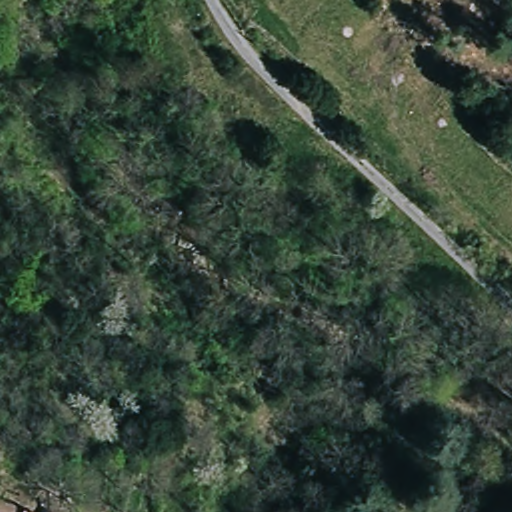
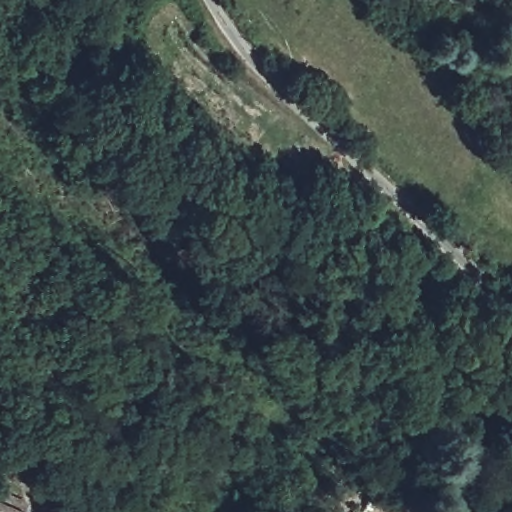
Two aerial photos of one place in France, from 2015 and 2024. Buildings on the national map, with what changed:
unchanged [(27,512),(0,512),(0,500),(21,509),(27,512)]

